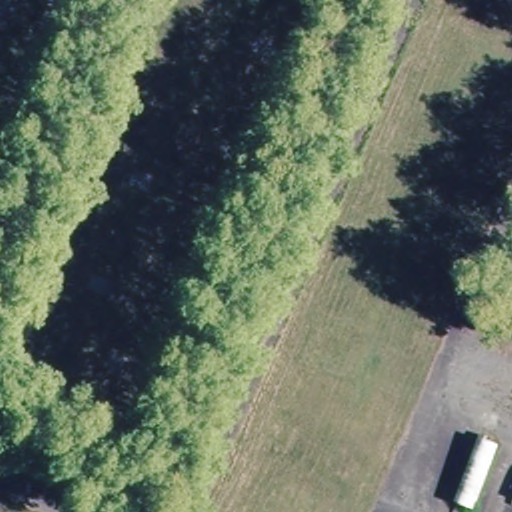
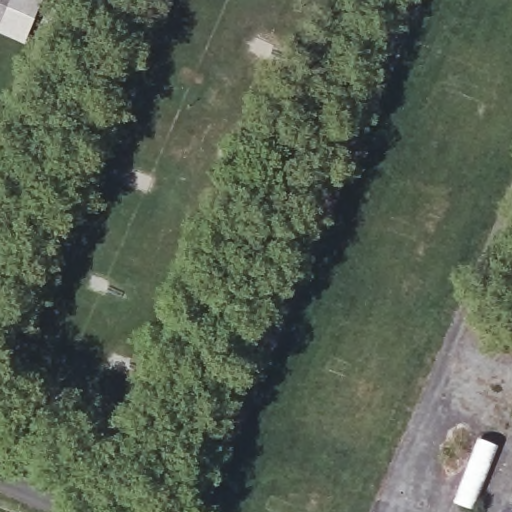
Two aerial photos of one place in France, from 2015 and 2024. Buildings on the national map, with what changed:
unchanged [(0,24),(0,0),(9,0),(0,24)]
new [(26,45),(0,32),(0,24),(9,0),(44,0),(26,45)]

